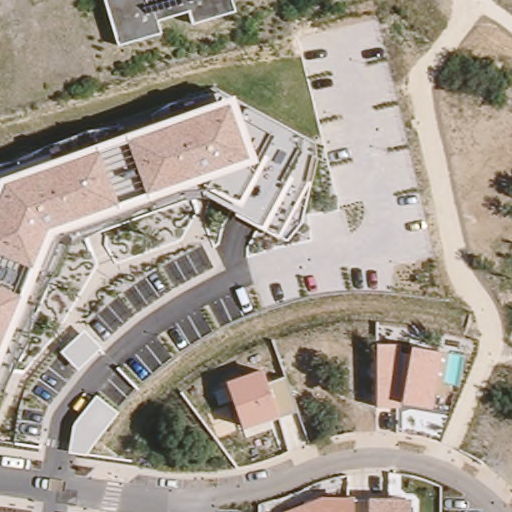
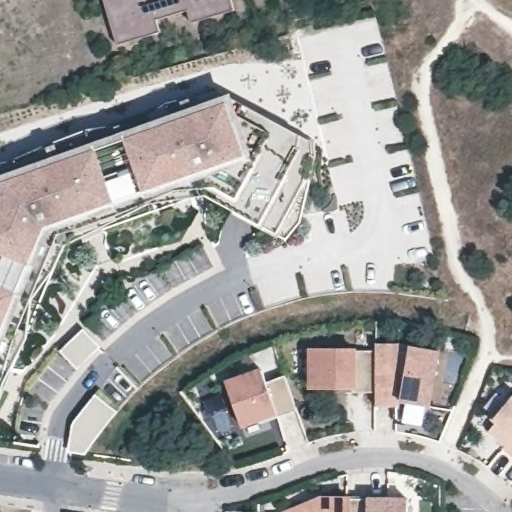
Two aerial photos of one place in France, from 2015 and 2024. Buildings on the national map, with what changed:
unchanged [(187,27),(184,13),(153,23),(157,35),(113,47),(100,0),(230,0),(234,15),(187,27)]
unchanged [(232,96),(302,136),(315,142),(310,178),(301,223),(286,240),(276,235),(261,228),(235,215),(238,211),(208,196),(150,205),(67,244),(55,272),(32,302),(30,335),(0,408),(0,179),(232,96)]
unchanged [(62,350),(84,329),(102,347),(77,367),(62,350)]
unchanged [(377,343),(410,345),(439,349),(431,406),(401,400),(400,408),(375,406),(377,343)]
new [(377,350),(376,393),(308,390),(309,349),(377,350)]
unchanged [(225,382),(261,369),(266,385),(283,378),(297,410),(278,419),(276,415),(242,427),(225,382)]
unchanged [(70,451),(72,424),(97,396),(118,412),(85,454),(70,451)]
new [(489,430),(497,421),(494,418),(512,397),(512,454),(503,447),(506,444),(489,430)]
unchanged [(321,496),(350,496),(367,497),(408,498),(408,512),(282,512),(321,496)]

